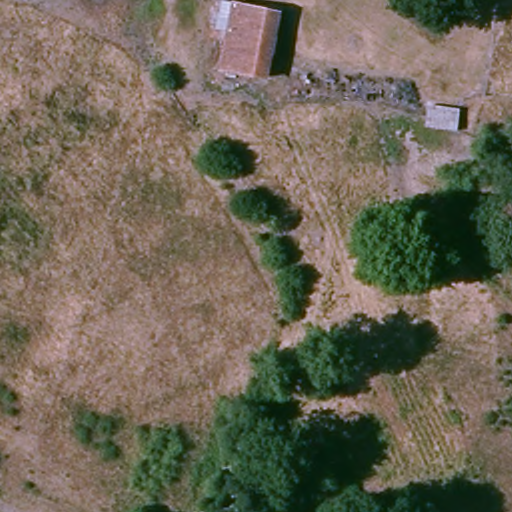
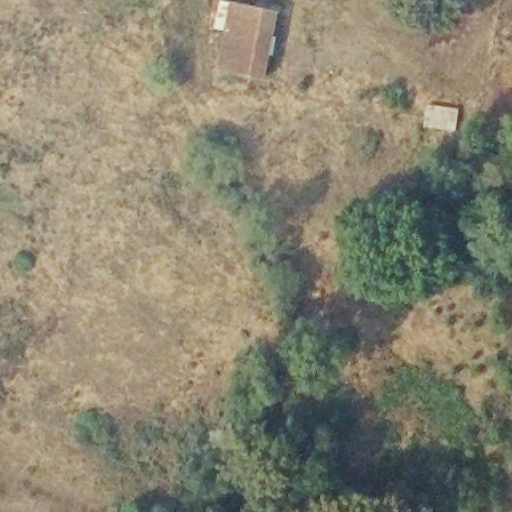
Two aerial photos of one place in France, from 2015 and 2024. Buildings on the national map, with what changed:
unchanged [(278,52),(275,77),(271,77),(230,71),(234,27),(220,25),(221,5),(281,14),(278,52)]

